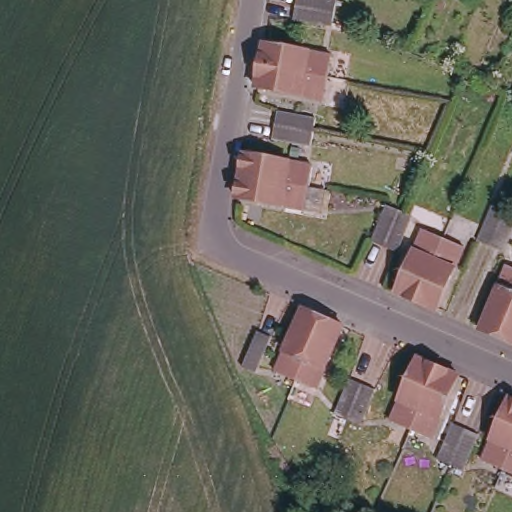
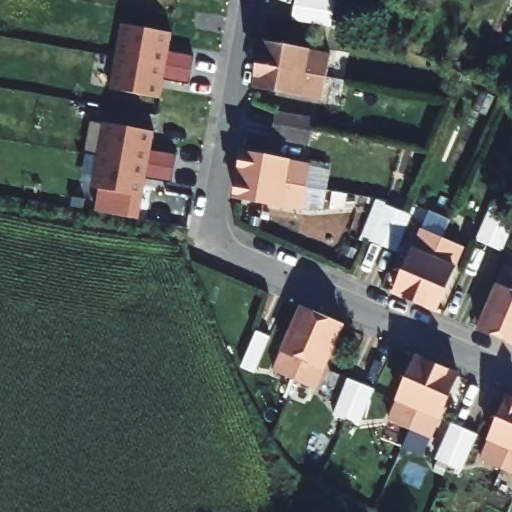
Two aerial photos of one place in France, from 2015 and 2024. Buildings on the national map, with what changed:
unchanged [(295,0),(334,0),(331,15),(330,21),(293,14),(295,0)]
new [(173,31),(170,51),(193,54),(189,83),(164,77),(161,97),(111,88),(122,22),(173,31)]
unchanged [(259,62),(263,40),(328,52),(324,73),(259,62)]
unchanged [(321,94),(256,84),(256,82),(259,62),(324,73),(321,94)]
unchanged [(273,133),(274,120),(276,107),(314,113),(312,126),(310,140),(273,133)]
new [(88,152),(91,124),(103,126),(103,120),(155,129),(152,149),(176,154),(173,182),(148,175),(144,196),(98,187),(82,183),(88,152)]
unchanged [(239,174),(243,153),(244,151),(311,163),(306,186),(239,174)]
unchanged [(303,206),(236,194),(239,174),(306,186),(303,206)]
unchanged [(493,202),(506,208),(512,210),(512,225),(502,248),(491,243),(478,237),(493,202)]
unchanged [(373,238),(387,204),(406,212),(412,215),(398,249),(391,246),(373,238)]
unchanged [(424,294),(402,285),(428,223),(449,233),(424,294)]
unchanged [(469,241),(443,303),(442,302),(424,294),(449,233),(469,241)]
unchanged [(482,327),(508,264),(512,266),(512,312),(502,336),(482,327)]
unchanged [(281,365),(307,301),(328,311),(301,374),(281,365)]
unchanged [(328,311),(344,317),(348,320),(321,383),(301,374),(328,311)]
unchanged [(502,336),(512,312),(512,340),(503,336),(502,336)]
unchanged [(259,331),(270,336),(256,369),(245,364),(259,331)]
unchanged [(390,419),(418,357),(438,365),(411,428),(390,419)]
unchanged [(438,365),(459,374),(430,436),(411,428),(438,365)]
unchanged [(349,420),(333,413),(348,378),(364,385),(374,390),(359,424),(349,420)]
unchanged [(512,394),(512,447),(508,457),(487,448),(512,394)]
unchanged [(463,469),(450,464),(436,457),(451,423),(465,429),(478,434),(463,469)]
unchanged [(512,459),(508,457),(512,447),(512,459)]

